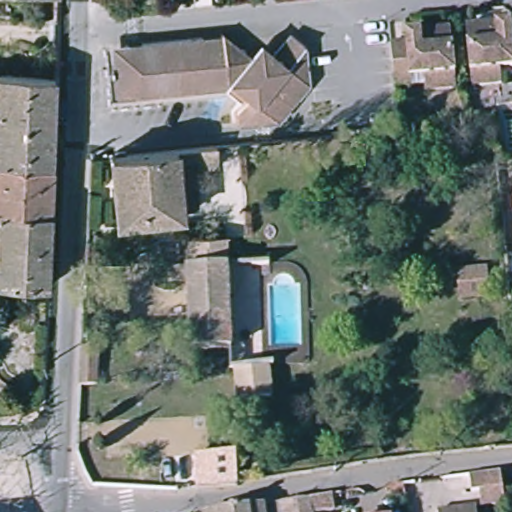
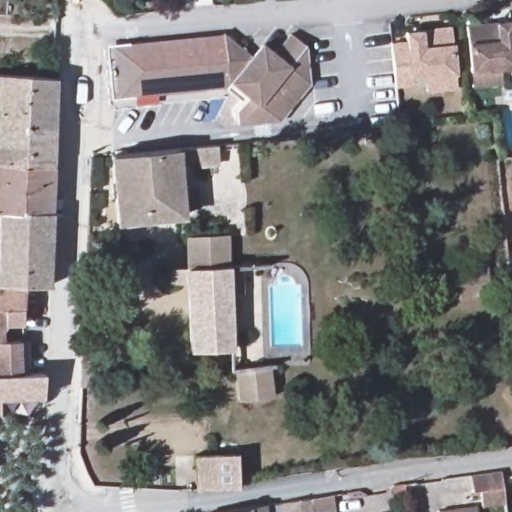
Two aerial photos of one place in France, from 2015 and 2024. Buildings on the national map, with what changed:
unchanged [(0,1),(0,0),(56,0),(56,4),(0,1)]
unchanged [(469,81),(468,66),(463,21),(508,16),(509,26),(512,26),(512,66),(512,62),(498,64),(499,78),(469,81)]
unchanged [(429,92),(427,77),(414,79),(414,86),(399,87),(394,45),(408,43),(407,33),(452,28),(457,74),(459,89),(429,92)]
unchanged [(304,52),(308,90),(277,127),(238,131),(236,118),(249,105),(234,93),(111,105),(106,55),(223,43),(248,62),(259,49),(274,59),(289,42),(304,52)]
unchanged [(53,90),(51,176),(43,176),(0,174),(0,87),(34,89),(53,90)]
unchanged [(376,132),(376,147),(366,147),(364,133),(376,132)]
unchanged [(114,160),(124,158),(125,162),(175,156),(214,152),(214,153),(216,169),(177,173),(182,224),(116,230),(109,164),(115,163),(114,160)]
unchanged [(0,174),(43,176),(51,176),(47,298),(0,296),(0,174)]
unchanged [(226,246),(228,279),(187,281),(186,248),(226,246)]
unchanged [(488,266),(492,298),(455,301),(453,270),(488,266)]
unchanged [(231,361),(190,362),(187,281),(228,279),(231,361)]
new [(23,325),(3,325),(3,341),(19,340),(21,373),(43,372),(43,397),(0,399),(0,296),(22,297),(23,325)]
unchanged [(98,349),(96,388),(79,390),(80,347),(98,349)]
unchanged [(161,379),(159,372),(176,370),(178,376),(161,379)]
unchanged [(236,373),(269,370),(271,400),(238,403),(236,373)]
unchanged [(236,494),(236,495),(194,496),(193,463),(236,460),(236,492),(236,494)]
unchanged [(499,472),(504,505),(481,507),(479,492),(472,493),(470,473),(499,472)]
unchanged [(272,512),(271,511),(299,507),(313,505),(335,502),(337,512),(272,512)]
unchanged [(266,505),(267,512),(217,512),(251,507),(266,505)]

